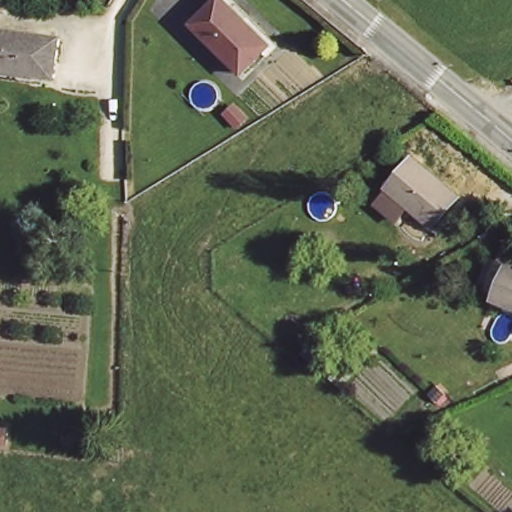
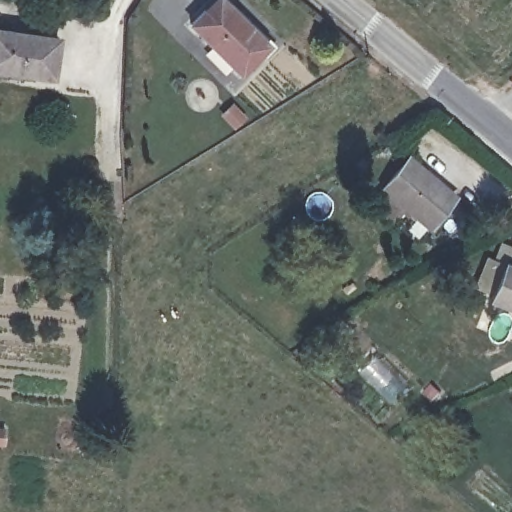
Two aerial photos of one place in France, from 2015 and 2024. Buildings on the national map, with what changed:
unchanged [(216,0),(222,0),(269,45),(244,68),(242,70),(234,63),(192,23),(216,0)]
unchanged [(53,75),(0,67),(0,30),(59,39),(53,75)]
unchanged [(424,223),(384,182),(409,158),(450,201),(424,223)]
unchanged [(503,265),(512,269),(512,306),(492,298),(503,265)]

